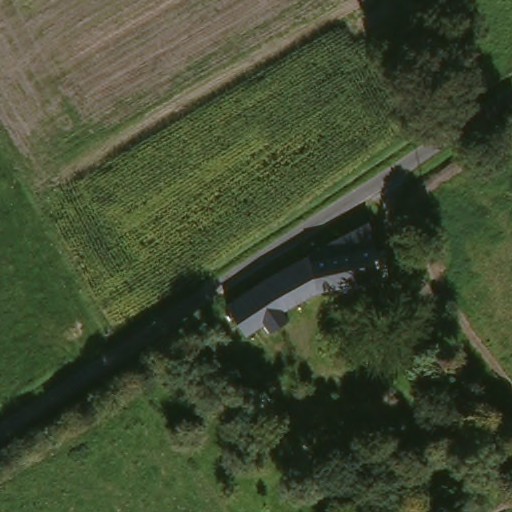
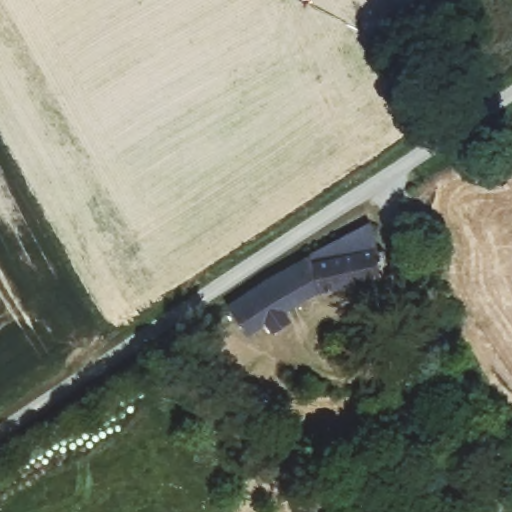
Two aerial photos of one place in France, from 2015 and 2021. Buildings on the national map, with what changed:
unchanged [(268,281),(373,223),(387,279),(321,295),(288,313),(250,336),(230,306),(268,281)]

